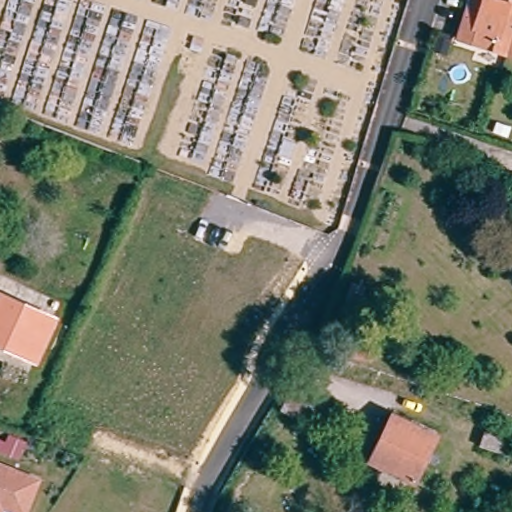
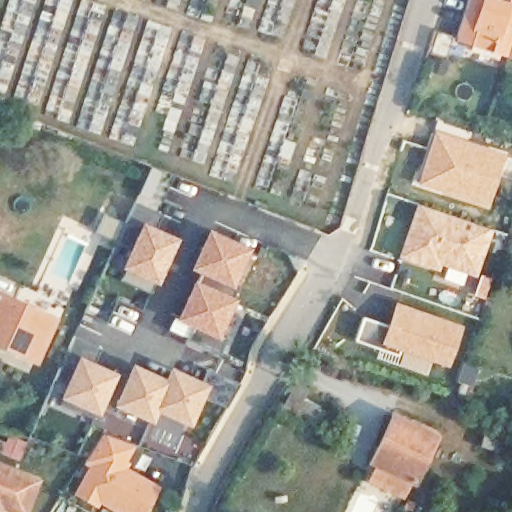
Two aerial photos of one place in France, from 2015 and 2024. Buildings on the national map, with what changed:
unchanged [(469,42),(453,36),(465,0),(502,0),(503,0),(512,0),(512,55),(489,48),(469,42)]
unchanged [(433,42),(447,48),(442,61),(428,56),(433,42)]
new [(437,135),(502,157),(493,186),(473,180),(467,198),(421,183),(437,135)]
new [(420,204),(490,228),(474,273),(439,261),(437,267),(402,255),(420,204)]
new [(141,219),(179,237),(157,286),(119,268),(141,219)]
new [(207,227),(252,245),(234,290),(196,273),(188,269),(207,227)]
new [(196,273),(234,290),(232,293),(237,296),(219,341),(188,327),(184,336),(168,329),(196,273)]
unchanged [(29,358),(0,344),(0,294),(48,317),(29,358)]
new [(363,318),(390,328),(397,308),(458,329),(445,365),(400,350),(398,357),(354,342),(363,318)]
new [(118,374),(98,416),(59,398),(79,356),(118,374)]
new [(164,378),(170,366),(203,380),(209,370),(239,383),(227,406),(205,396),(190,426),(159,412),(153,423),(114,405),(133,363),(164,378)]
unchanged [(294,418),(281,411),(296,385),(309,391),(294,418)]
unchanged [(317,427),(298,417),(305,403),(324,413),(317,427)]
unchanged [(407,482),(366,462),(389,415),(430,435),(407,482)]
unchanged [(479,447),(485,432),(512,443),(512,452),(509,459),(479,447)]
unchanged [(84,462),(103,434),(133,445),(116,467),(119,469),(117,474),(151,491),(140,512),(113,512),(96,501),(93,506),(74,493),(92,467),(84,462)]
unchanged [(33,483),(23,512),(0,512),(0,471),(33,483)]

